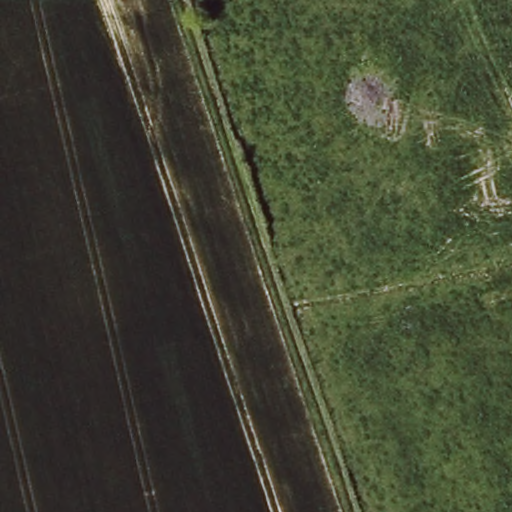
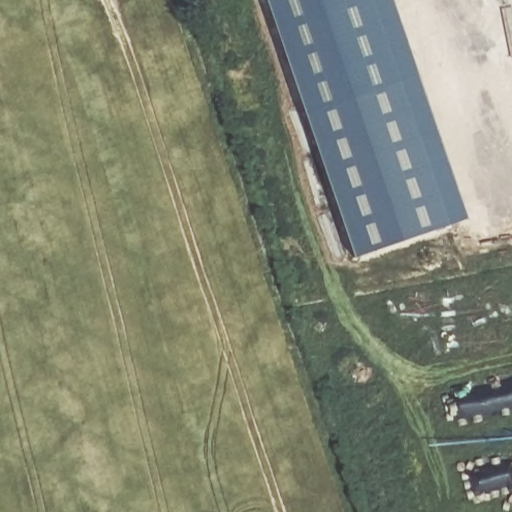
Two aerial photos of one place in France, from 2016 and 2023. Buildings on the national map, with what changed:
new [(266,0),(392,0),(419,76),(400,83),(450,225),(357,258),(266,0)]

